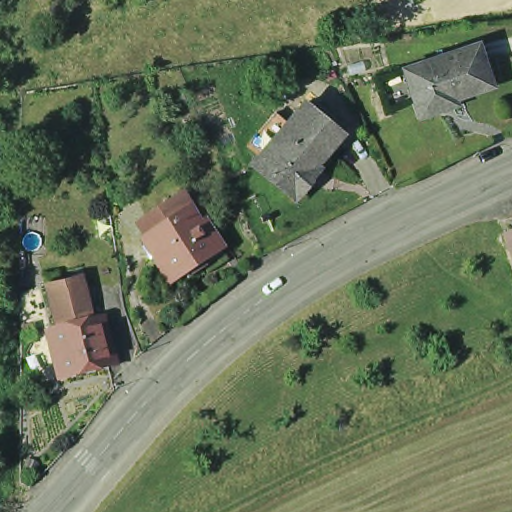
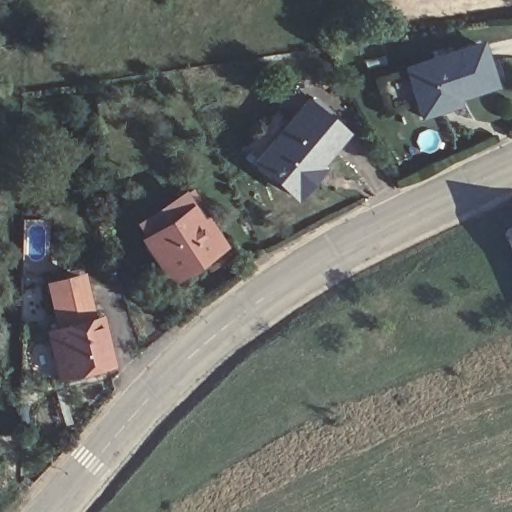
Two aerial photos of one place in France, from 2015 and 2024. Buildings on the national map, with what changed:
unchanged [(445,103),(423,111),(407,64),(480,39),(493,81),(443,97),(445,103)]
unchanged [(296,200),(257,167),(263,161),(251,150),(278,117),(291,127),(307,109),(342,137),(308,177),(312,182),(296,200)]
unchanged [(203,262),(207,270),(190,281),(185,275),(172,283),(145,244),(150,241),(141,227),(182,201),(191,214),(202,207),(213,224),(202,231),(217,253),(203,262)]
unchanged [(502,229),(512,225),(512,253),(502,229)]
unchanged [(105,358),(61,370),(50,329),(58,326),(55,314),(48,316),(45,301),(51,299),(50,296),(73,289),(82,320),(93,317),(105,358)]

